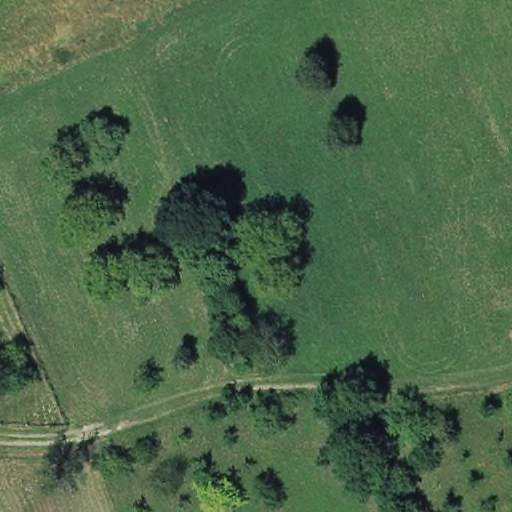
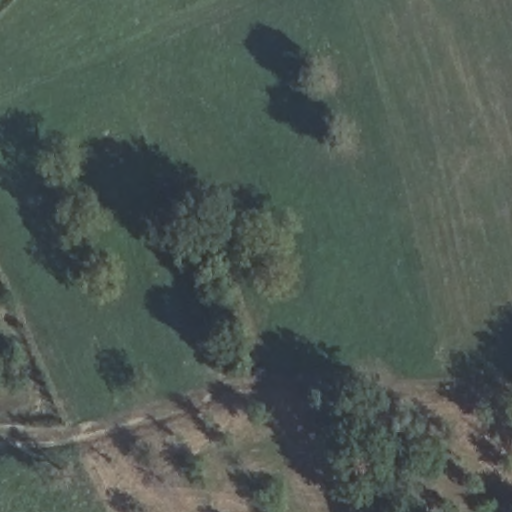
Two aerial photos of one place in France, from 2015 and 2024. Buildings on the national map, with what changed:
[]

